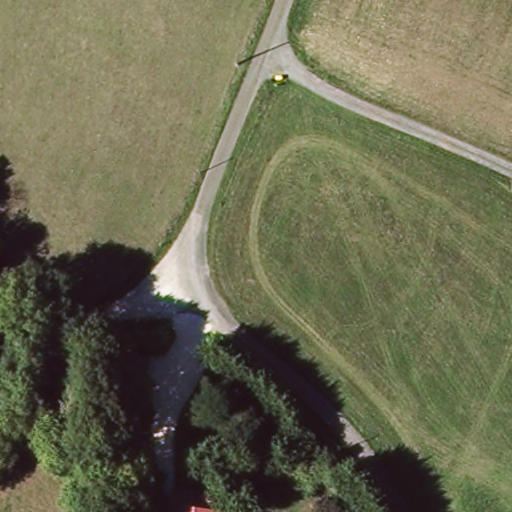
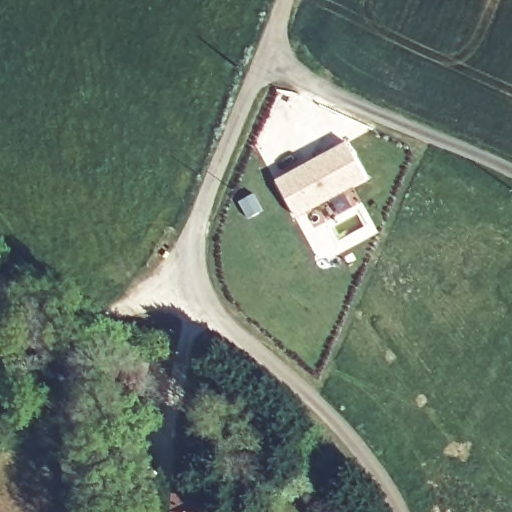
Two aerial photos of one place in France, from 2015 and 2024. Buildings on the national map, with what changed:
new [(346,141),(367,178),(296,217),(276,179),(346,141)]
unchanged [(130,418),(115,417),(117,397),(132,399),(130,418)]
unchanged [(214,499),(213,512),(168,512),(169,496),(214,499)]

